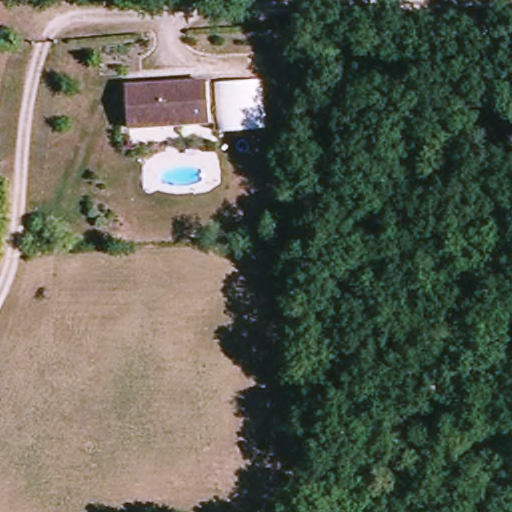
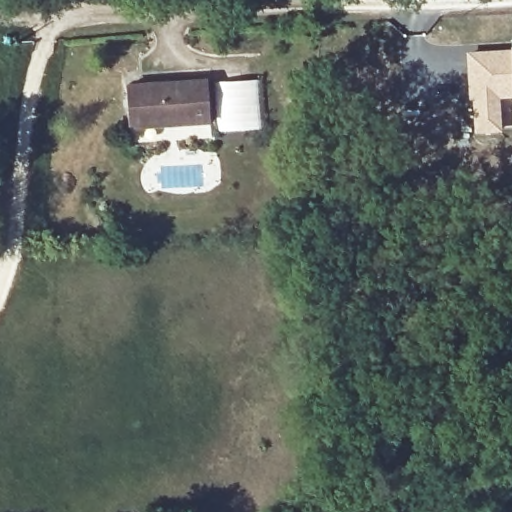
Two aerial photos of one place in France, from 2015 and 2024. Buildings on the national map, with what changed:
new [(512,40),(512,74),(511,48),(512,40)]
new [(511,48),(512,74),(512,100),(501,100),(502,134),(473,137),(467,99),(465,50),(511,48)]
unchanged [(212,123),(130,128),(127,86),(211,81),(212,123)]
unchanged [(217,84),(260,81),(262,132),(222,135),(217,84)]

